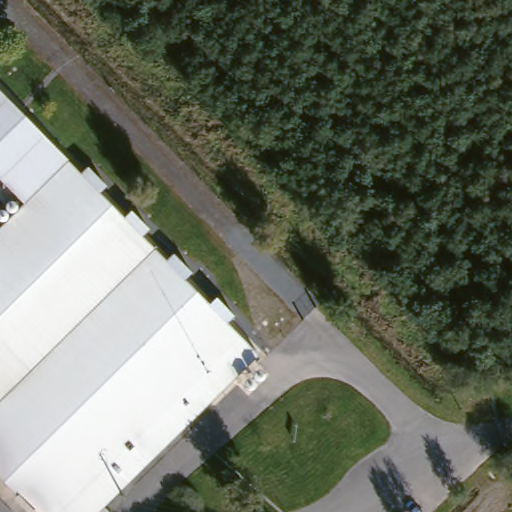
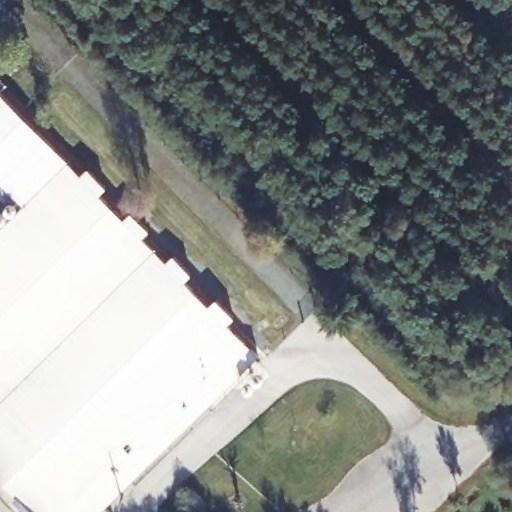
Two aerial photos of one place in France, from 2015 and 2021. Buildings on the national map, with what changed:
unchanged [(23,211),(0,188),(0,92),(72,165),(23,211)]
unchanged [(0,234),(23,211),(72,165),(262,357),(103,512),(36,512),(0,475),(0,234)]

